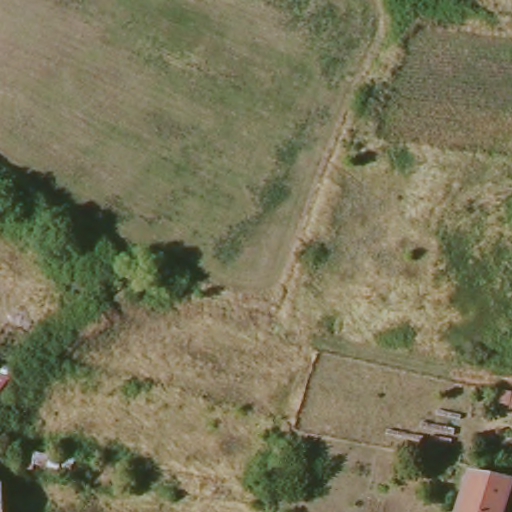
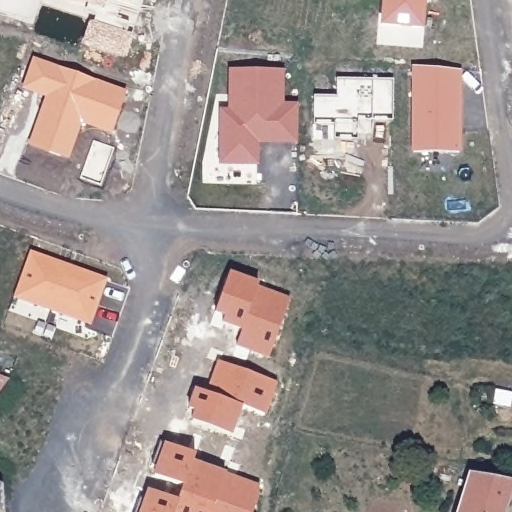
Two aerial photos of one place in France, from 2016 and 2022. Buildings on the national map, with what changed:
new [(7,16),(0,14),(0,0),(12,0),(7,16)]
new [(12,0),(36,0),(29,24),(7,16),(12,0)]
new [(87,45),(96,16),(92,15),(87,7),(90,0),(143,0),(138,15),(131,37),(125,57),(87,45)]
new [(423,28),(383,25),(385,0),(425,0),(423,28)]
new [(39,62),(126,94),(115,124),(89,115),(76,151),(39,139),(52,99),(29,90),(39,62)]
new [(415,66),(460,70),(453,155),(407,151),(415,66)]
new [(221,111),(230,111),(231,70),(283,70),(282,105),(299,106),(298,143),(266,142),(266,136),(258,136),(257,165),(237,164),(221,164),(221,159),(221,111)]
new [(314,96),(337,96),(337,79),(394,80),(394,121),(359,121),(358,140),(334,140),(335,125),(313,125),(314,96)]
new [(29,252),(106,279),(90,323),(14,296),(29,252)]
new [(229,273),(259,285),(257,288),(291,300),(270,357),(237,345),(242,330),(222,322),(225,315),(215,312),(229,273)]
new [(196,390),(207,395),(219,363),(276,384),(264,416),(241,407),(229,437),(191,422),(195,413),(189,410),(196,390)]
new [(195,462),(262,487),(259,500),(255,512),(136,512),(142,496),(148,498),(152,489),(180,500),(185,485),(157,475),(160,465),(154,463),(162,441),(198,454),(195,462)]
unchanged [(512,482),(512,500),(507,499),(503,512),(454,512),(466,473),(512,482)]
unchanged [(5,512),(0,512),(0,486),(4,487),(5,503),(5,512)]

